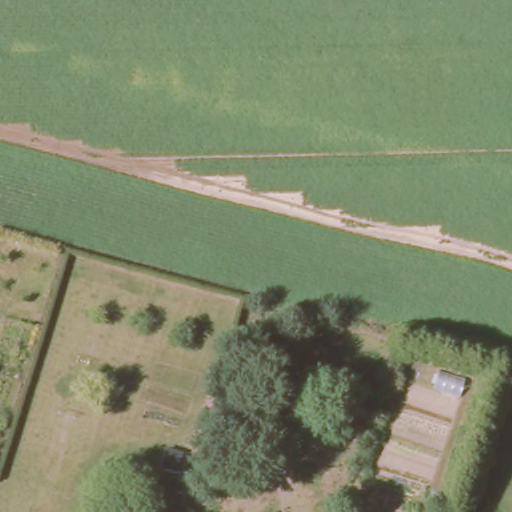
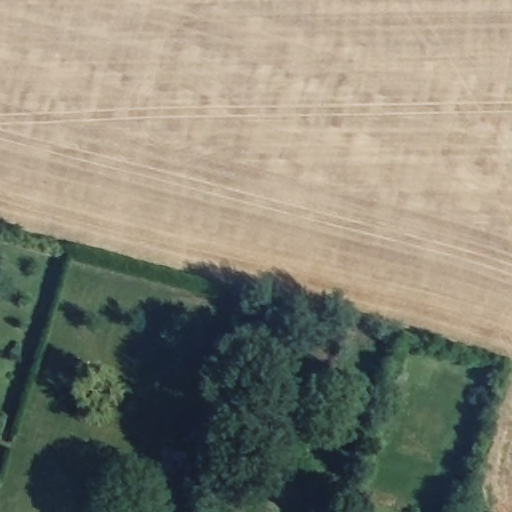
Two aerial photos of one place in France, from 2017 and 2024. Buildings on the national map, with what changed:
unchanged [(169,455),(182,458),(177,476),(164,473),(169,455)]

